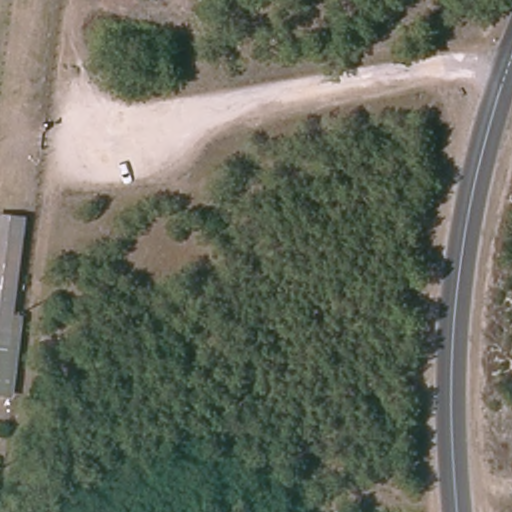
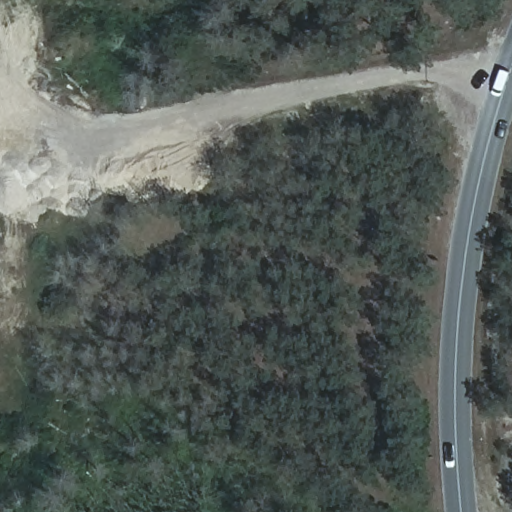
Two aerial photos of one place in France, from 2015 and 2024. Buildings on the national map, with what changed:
demolished [(0,397),(0,212),(31,214),(19,316),(30,316),(20,399),(0,397)]

